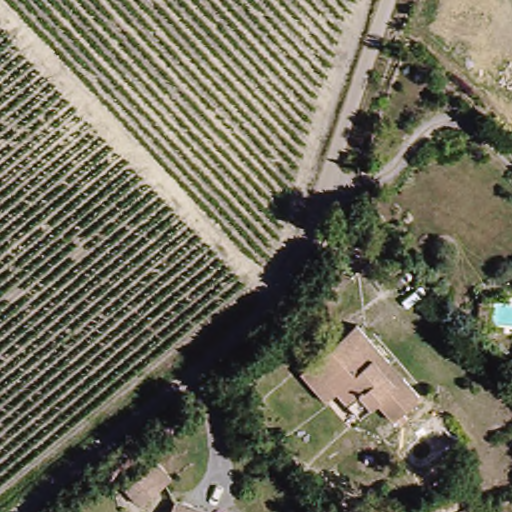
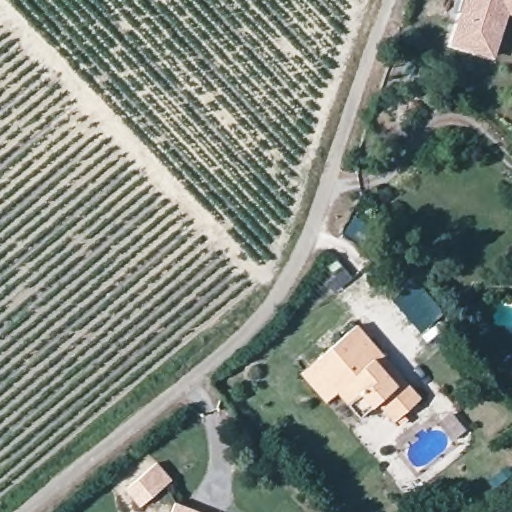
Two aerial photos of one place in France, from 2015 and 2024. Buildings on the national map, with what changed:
new [(468,0),(512,0),(512,7),(499,4),(483,54),(454,45),(468,0)]
unchanged [(319,384),(304,365),(333,342),(363,319),(392,360),(408,380),(421,398),(392,421),(377,405),(361,416),(339,387),(328,395),(319,384)]
unchanged [(149,507),(138,491),(169,468),(181,484),(149,507)]
unchanged [(190,512),(172,512),(174,505),(190,512)]

